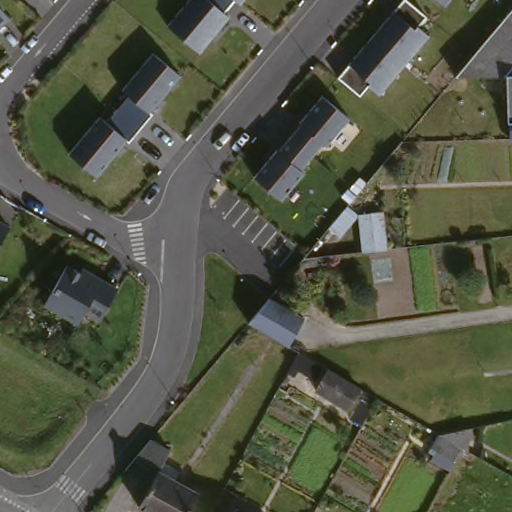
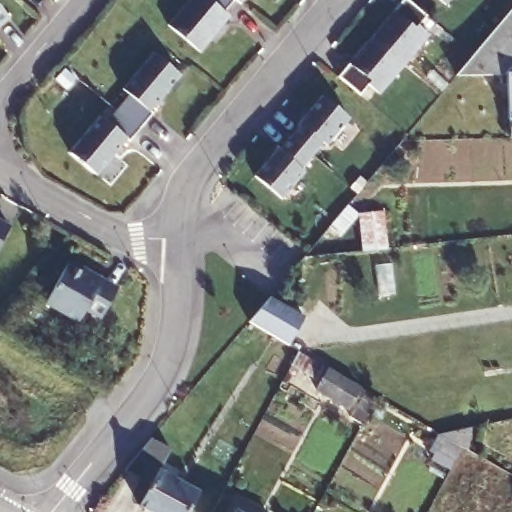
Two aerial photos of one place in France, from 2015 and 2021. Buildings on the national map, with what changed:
unchanged [(246,0),(200,52),(169,25),(190,0),(246,0)]
unchanged [(421,25),(432,32),(383,92),(371,84),(361,92),(340,74),(402,0),(414,0),(430,13),(421,25)]
unchanged [(443,0),(449,0),(446,3),(443,0)]
unchanged [(475,46),(512,3),(512,58),(503,69),(475,46)]
unchanged [(8,20),(0,26),(0,8),(8,20)]
unchanged [(157,51),(182,75),(98,174),(71,152),(157,51)]
unchanged [(350,114),(284,197),(255,173),(321,92),(350,114)]
unchanged [(14,230),(0,261),(0,224),(14,230)]
unchanged [(122,293),(106,323),(90,312),(80,328),(47,307),(71,262),(122,293)]
unchanged [(256,317),(277,293),(311,313),(296,341),(256,317)]
unchanged [(349,410),(314,389),(328,368),(362,390),(349,410)]
unchanged [(171,451),(161,472),(199,492),(190,512),(152,512),(142,507),(153,483),(123,469),(149,439),(171,451)]
unchanged [(254,512),(242,512),(245,507),(254,512)]

